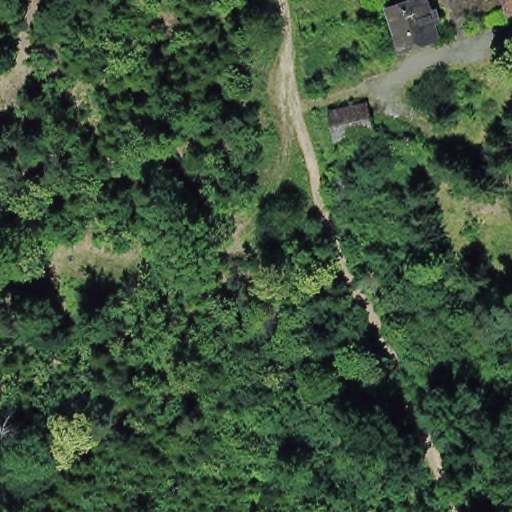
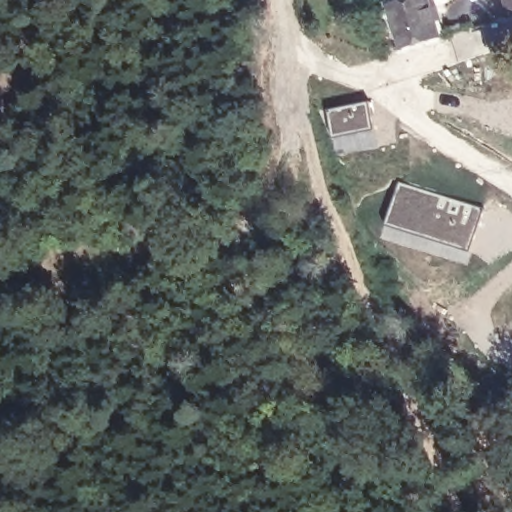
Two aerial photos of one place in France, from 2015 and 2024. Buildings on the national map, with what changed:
unchanged [(394,6),(404,4),(416,0),(433,0),(444,37),(406,49),(394,6)]
unchanged [(404,0),(416,0),(404,4),(404,0)]
unchanged [(336,136),(331,110),(369,101),(374,128),(336,136)]
new [(483,209),(470,250),(387,225),(398,185),(483,209)]

